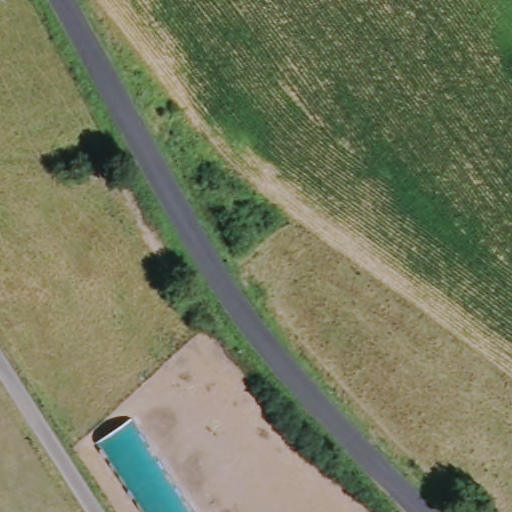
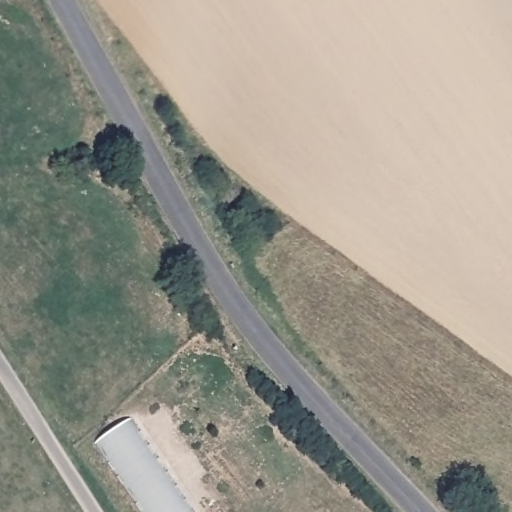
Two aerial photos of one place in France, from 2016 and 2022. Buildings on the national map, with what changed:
unchanged [(203,512),(146,512),(100,445),(141,420),(203,512)]

